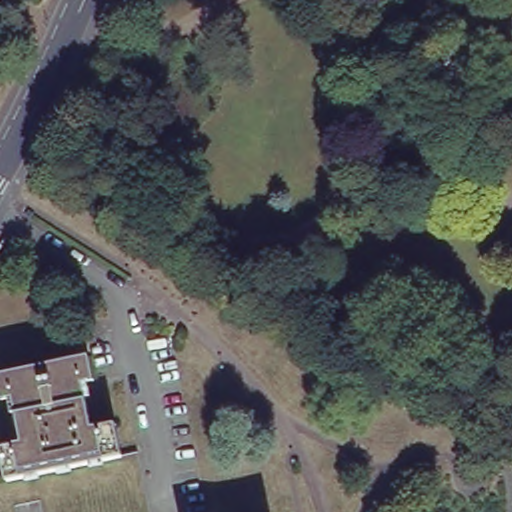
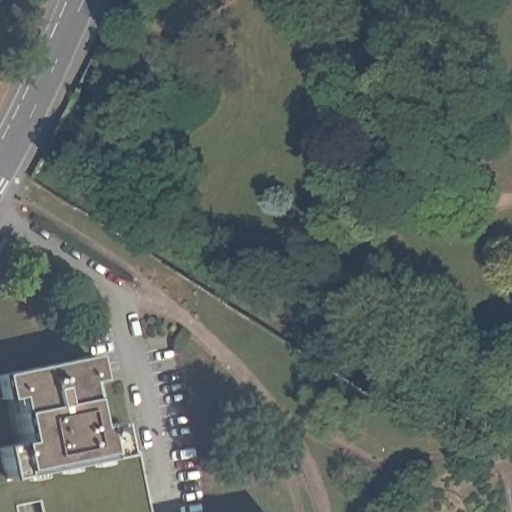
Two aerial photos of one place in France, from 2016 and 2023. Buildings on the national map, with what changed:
unchanged [(0,2),(0,0),(3,0),(0,2)]
unchanged [(0,457),(0,448),(22,443),(12,397),(1,400),(0,398),(0,375),(87,356),(92,380),(81,382),(85,399),(91,428),(114,423),(121,456),(137,452),(150,512),(41,512),(39,501),(15,506),(16,512),(0,512),(0,482),(6,480),(0,457)]

